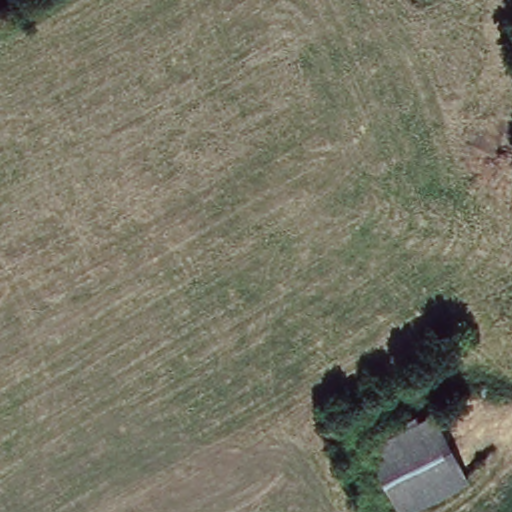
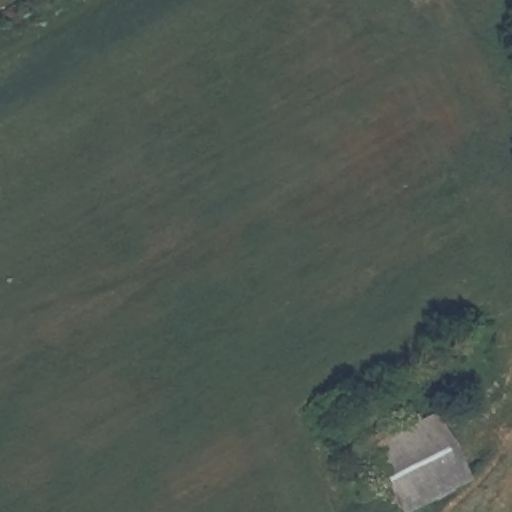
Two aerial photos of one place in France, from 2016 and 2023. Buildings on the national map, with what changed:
unchanged [(473,479),(405,512),(400,512),(363,439),(414,411),(418,422),(435,409),(473,479)]

